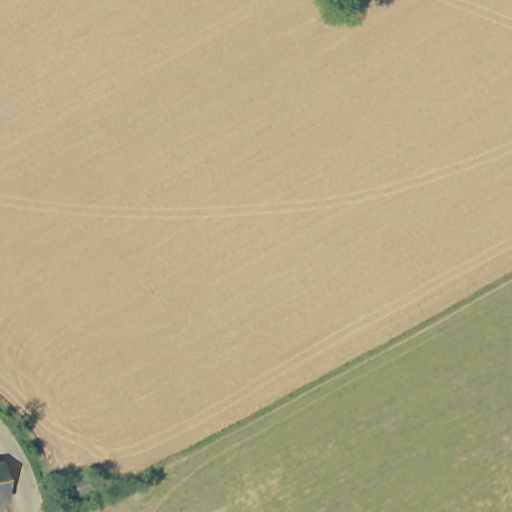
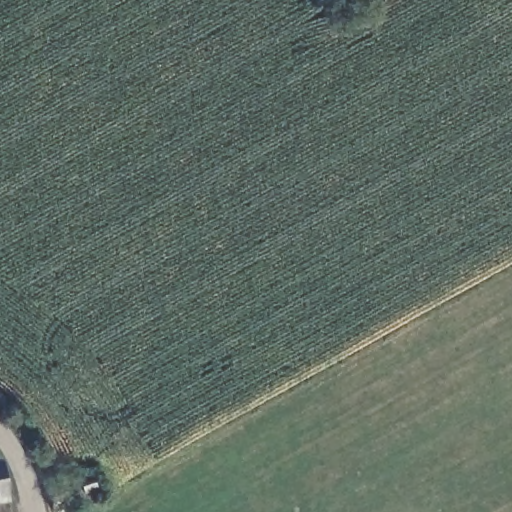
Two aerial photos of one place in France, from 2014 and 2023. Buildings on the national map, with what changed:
unchanged [(98,468),(100,475),(99,483),(89,484),(85,481),(83,477),(83,472),(84,467),(87,463),(91,461),(93,461),(95,469),(98,468)]
unchanged [(9,503),(0,505),(0,464),(1,464),(9,503)]

